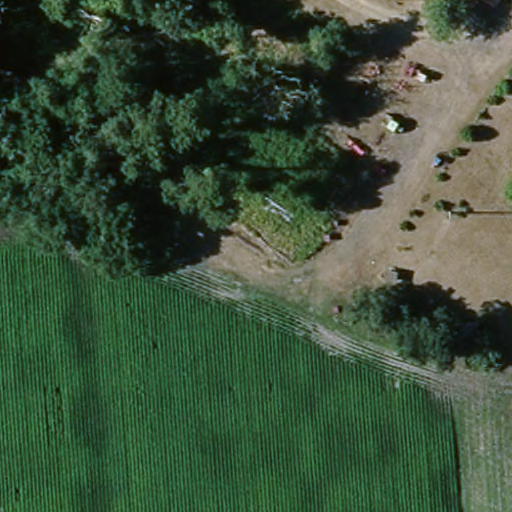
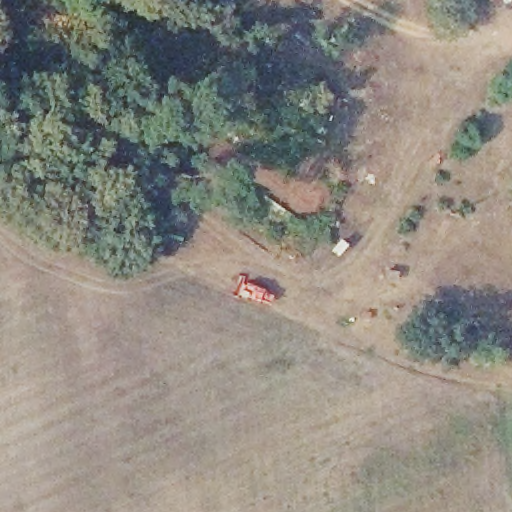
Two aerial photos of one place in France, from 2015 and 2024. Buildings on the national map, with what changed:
unchanged [(502,0),(499,5),(490,0),(502,0)]

